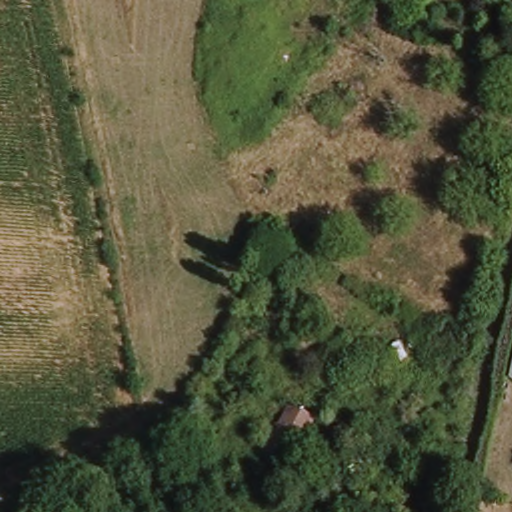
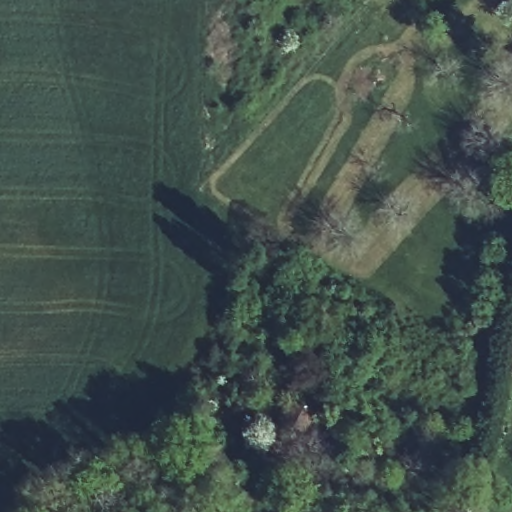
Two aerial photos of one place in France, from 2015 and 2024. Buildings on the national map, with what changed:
unchanged [(512,347),(512,374),(506,372),(512,347)]
unchanged [(271,395),(289,366),(309,380),(291,409),(271,395)]

